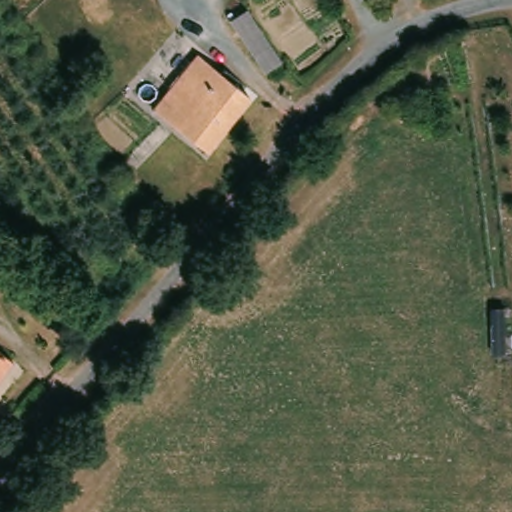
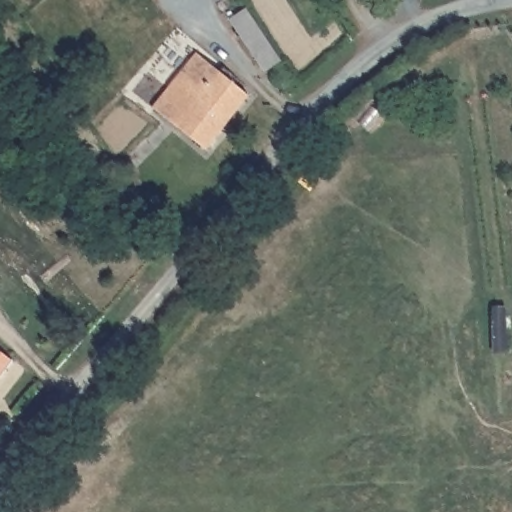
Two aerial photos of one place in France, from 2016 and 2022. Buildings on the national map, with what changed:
unchanged [(261,71),(225,19),(229,17),(226,9),(227,6),(229,5),(233,6),(237,9),(243,6),(280,59),(261,71)]
unchanged [(202,54),(252,94),(210,144),(159,104),(202,54)]
unchanged [(0,386),(0,343),(21,359),(0,386)]

